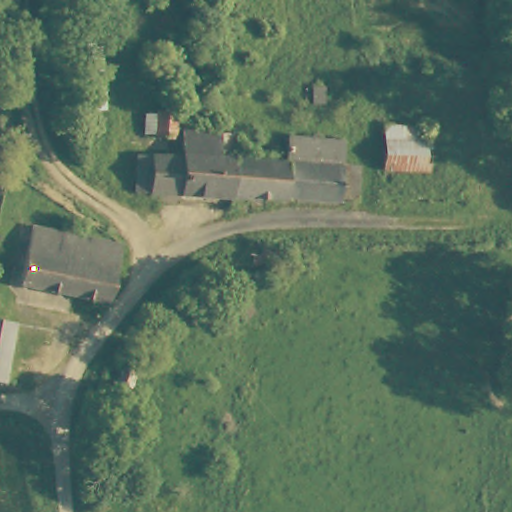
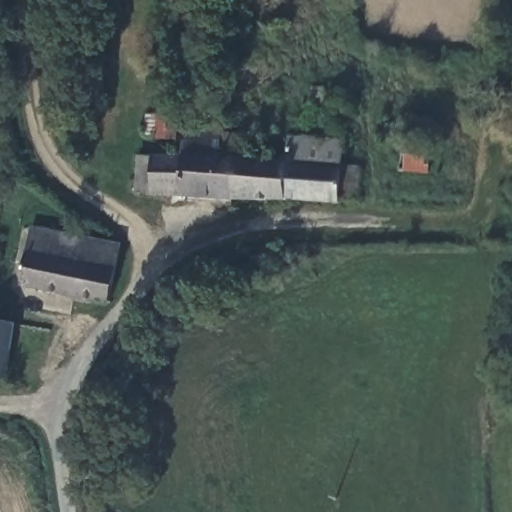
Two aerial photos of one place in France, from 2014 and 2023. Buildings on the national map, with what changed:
unchanged [(100,99),(76,100),(73,47),(97,46),(100,99)]
unchanged [(185,114),(185,127),(184,140),(146,140),(146,112),(185,114)]
unchanged [(385,170),(387,124),(431,127),(429,173),(385,170)]
unchanged [(156,193),(156,190),(134,189),(135,160),(155,160),(155,155),(184,156),(184,140),(185,127),(221,127),(222,157),(234,158),(231,196),(156,193)]
unchanged [(283,137),(345,140),(345,164),(282,160),(283,137)]
unchanged [(344,200),(231,196),(234,158),(282,160),(345,164),(344,200)]
unchanged [(103,299),(20,283),(32,226),(52,230),(115,245),(103,299)]
unchanged [(1,381),(0,381),(0,323),(12,325),(1,381)]
unchanged [(124,360),(139,364),(129,396),(114,392),(124,360)]
unchanged [(116,452),(105,448),(109,436),(120,440),(116,452)]

